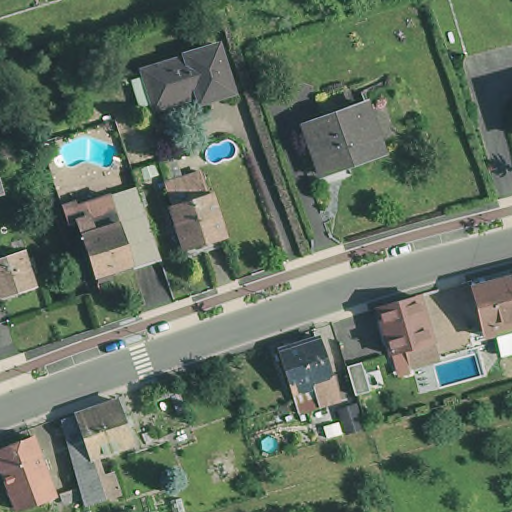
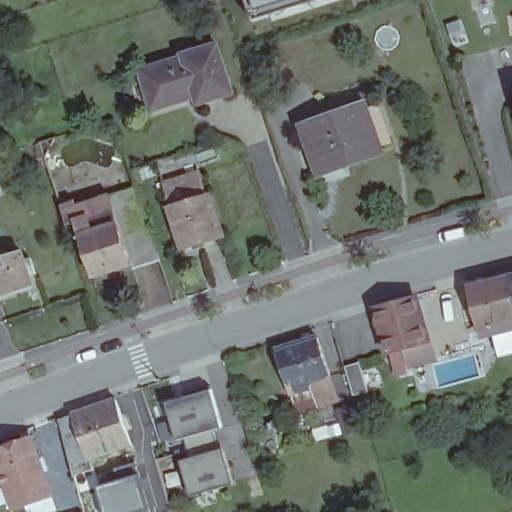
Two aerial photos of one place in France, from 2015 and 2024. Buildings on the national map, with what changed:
new [(246,0),(312,0),(252,18),(246,0)]
unchanged [(148,70),(191,57),(191,54),(223,44),(235,84),(238,93),(204,104),(202,95),(159,109),(159,107),(148,70)]
unchanged [(307,125),(367,104),(384,153),(345,166),(343,161),(323,169),(307,125)]
unchanged [(0,197),(0,168),(8,195),(0,197)]
unchanged [(224,241),(186,253),(173,214),(166,192),(203,180),(209,202),(212,201),(224,241)]
unchanged [(105,214),(68,226),(59,229),(53,213),(127,186),(151,259),(123,268),(105,214)]
unchanged [(85,280),(68,226),(105,214),(123,268),(85,280)]
unchanged [(34,265),(25,268),(30,288),(0,298),(0,259),(21,252),(24,259),(32,258),(34,265)]
unchanged [(489,337),(483,316),(476,288),(512,278),(512,353),(502,356),(497,334),(489,337)]
unchanged [(419,367),(414,349),(398,355),(384,308),(423,296),(437,343),(442,360),(419,367)]
unchanged [(300,414),(292,389),(280,351),(321,338),(333,376),(314,382),(323,408),(300,414)]
new [(180,461),(191,458),(184,439),(178,441),(166,403),(213,391),(223,428),(214,431),(221,449),(223,449),(235,484),(190,497),(180,461)]
unchanged [(63,422),(119,403),(133,442),(73,461),(63,422)]
new [(359,404),(368,431),(348,436),(340,411),(359,404)]
unchanged [(10,487),(0,460),(0,450),(34,437),(47,473),(55,496),(18,510),(10,487)]
unchanged [(80,488),(78,478),(74,464),(94,458),(106,498),(85,506),(83,497),(65,502),(63,493),(80,488)]

